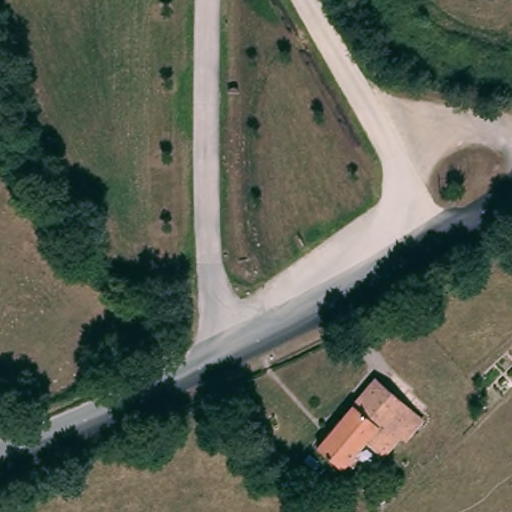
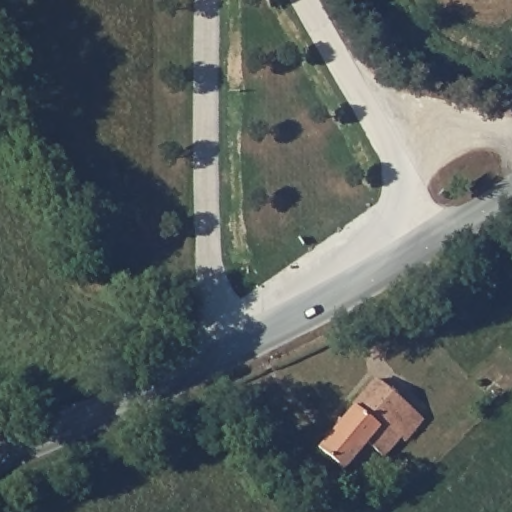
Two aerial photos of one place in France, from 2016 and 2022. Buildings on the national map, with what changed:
unchanged [(417,415),(381,453),(363,439),(340,466),(315,445),(372,377),(417,415)]

